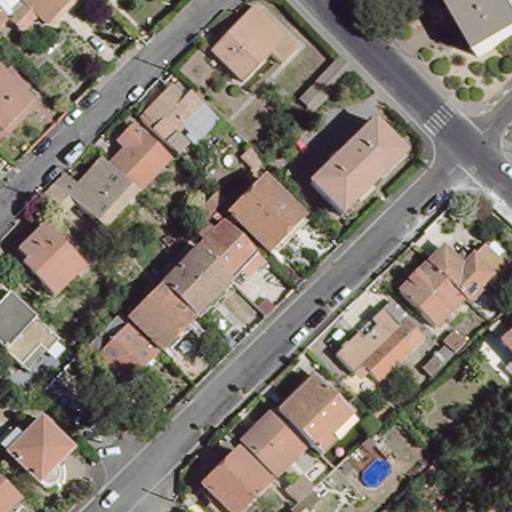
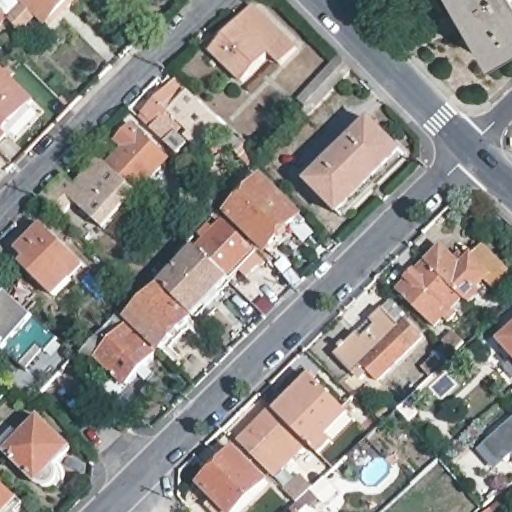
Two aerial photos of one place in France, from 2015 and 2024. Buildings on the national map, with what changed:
unchanged [(79,0),(50,27),(41,17),(25,34),(12,22),(30,6),(26,2),(11,16),(6,11),(0,17),(0,3),(3,0),(79,0)]
unchanged [(480,57),(447,0),(510,0),(512,4),(512,39),(480,57)]
unchanged [(255,5),(297,46),(281,62),(270,52),(243,79),(212,49),(255,5)]
unchanged [(328,81),(326,80),(340,65),(349,75),(326,99),(318,91),(328,81)]
unchanged [(11,137),(15,142),(3,155),(0,152),(0,69),(40,109),(11,137)]
unchanged [(195,143),(185,134),(189,131),(182,124),(175,131),(188,143),(179,152),(140,117),(170,86),(177,79),(188,90),(219,118),(195,143)]
unchanged [(378,120),(410,150),(347,211),(315,180),(378,120)]
unchanged [(98,164),(101,161),(106,165),(121,150),(115,143),(129,130),(164,161),(132,195),(98,164)]
unchanged [(0,157),(0,152),(3,155),(0,157)]
unchanged [(36,199),(58,177),(70,187),(96,162),(98,164),(132,195),(96,231),(70,205),(56,219),(36,199)]
unchanged [(275,177),(312,214),(279,247),(242,210),(275,177)]
unchanged [(227,191),(235,197),(214,216),(208,210),(227,191)]
unchanged [(263,254),(240,279),(198,239),(228,210),(274,255),(269,258),(263,254)]
unchanged [(38,268),(24,252),(48,228),(90,268),(60,297),(34,272),(38,268)]
unchanged [(186,251),(198,239),(240,279),(205,314),(170,282),(195,258),(186,251)]
unchanged [(439,249),(451,262),(458,256),(465,263),(480,249),(508,277),(491,293),(481,282),(462,302),(459,298),(425,263),(439,249)]
unchanged [(452,315),(442,324),(438,319),(429,327),(394,292),(425,263),(459,298),(447,310),(452,315)]
unchanged [(0,340),(0,281),(61,336),(50,347),(31,367),(23,360),(0,340)]
unchanged [(129,310),(135,303),(143,312),(170,285),(202,317),(173,346),(141,317),(139,319),(129,310)]
unchanged [(135,323),(166,352),(137,382),(106,352),(95,363),(87,353),(115,325),(123,335),(132,327),(122,316),(129,310),(139,319),(135,323)]
unchanged [(381,380),(368,367),(358,376),(340,356),(362,335),(367,340),(380,328),(375,322),(387,310),(404,327),(410,322),(426,337),(381,380)]
unchanged [(502,337),(512,328),(512,348),(502,337)]
unchanged [(456,333),(465,343),(455,352),(445,342),(456,333)]
unchanged [(352,407),(318,441),(313,436),(281,404),(316,370),(352,407)]
unchanged [(250,434),(281,404),(313,436),(281,466),(250,434)]
unchanged [(71,451),(53,468),(55,470),(56,473),(57,477),(56,480),(55,482),(51,485),(47,487),(42,487),(5,452),(38,419),(71,451)]
new [(496,471),(478,452),(512,422),(512,457),(496,471)]
unchanged [(242,442),(273,475),(238,508),(207,476),(242,442)]
unchanged [(11,512),(0,512),(0,478),(23,500),(11,512)]
unchanged [(291,510),(297,504),(302,510),(300,512),(289,512),(291,510)]

